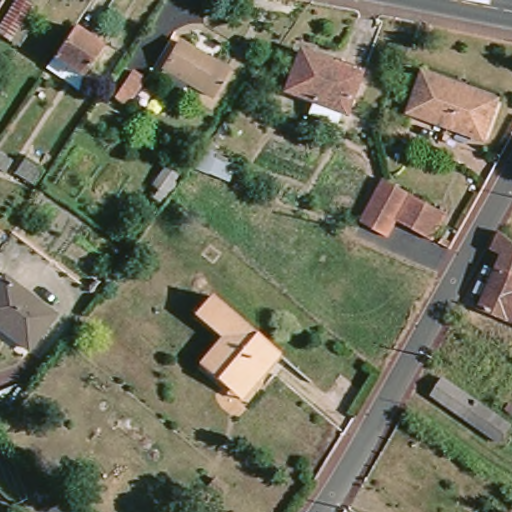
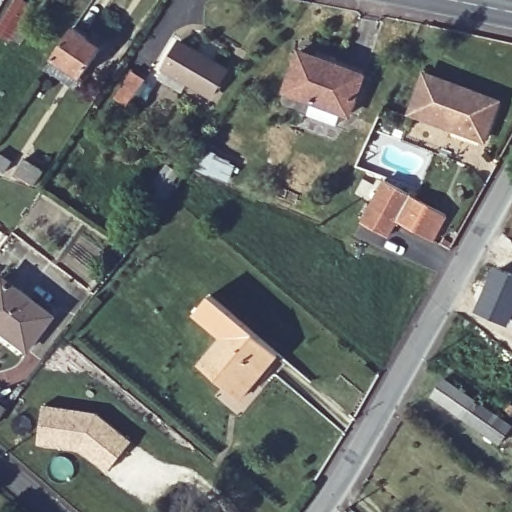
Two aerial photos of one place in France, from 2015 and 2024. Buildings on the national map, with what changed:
unchanged [(30,6),(7,40),(0,35),(0,25),(17,0),(21,0),(30,6)]
unchanged [(46,61),(52,54),(73,24),(99,41),(79,71),(73,80),(46,61)]
unchanged [(208,97),(164,67),(180,42),(224,73),(208,97)]
unchanged [(284,90),(299,52),(362,76),(347,115),(284,90)]
unchanged [(145,81),(128,105),(116,97),(133,72),(145,81)]
unchanged [(411,110),(426,72),(498,100),(483,137),(411,110)]
unchanged [(194,169),(195,162),(204,149),(214,155),(207,173),(194,169)]
unchanged [(36,189),(14,174),(23,160),(45,176),(36,189)]
unchanged [(425,240),(390,219),(379,235),(355,220),(379,180),(440,215),(425,240)]
unchanged [(475,308),(479,298),(471,295),(482,270),(490,274),(497,256),(486,251),(495,232),(512,247),(512,325),(475,308)]
unchanged [(21,350),(0,334),(0,281),(46,315),(21,350)]
unchanged [(219,336),(190,312),(205,295),(273,352),(236,397),(196,363),(219,336)]
unchanged [(438,378),(506,420),(496,436),(427,395),(438,378)]
unchanged [(0,421),(0,396),(11,405),(0,421)]
new [(43,403),(97,411),(133,440),(106,472),(88,458),(76,452),(35,445),(43,403)]
unchanged [(211,485),(218,477),(228,488),(220,495),(211,485)]
unchanged [(512,508),(512,512),(509,512),(512,508)]

